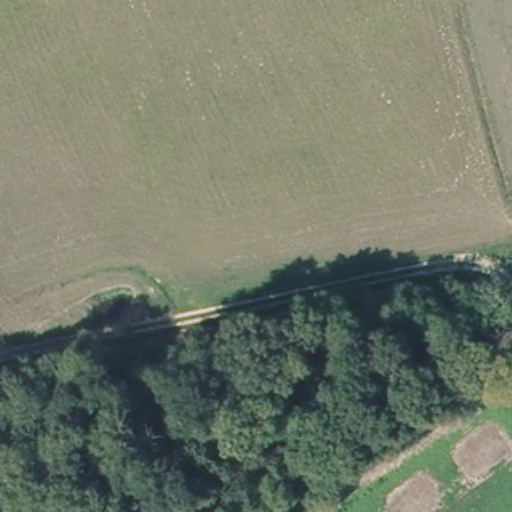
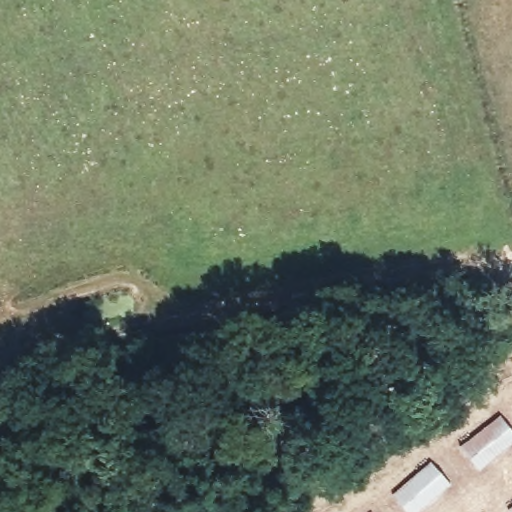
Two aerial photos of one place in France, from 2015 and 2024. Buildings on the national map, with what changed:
new [(427,466),(446,491),(417,512),(400,512),(387,495),(427,466)]
new [(512,505),(512,512),(508,507),(512,505)]

